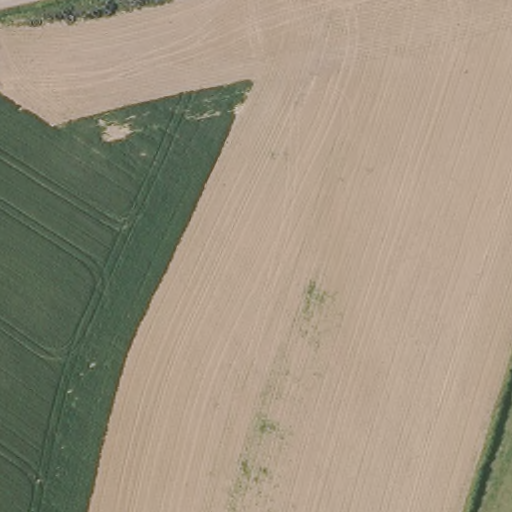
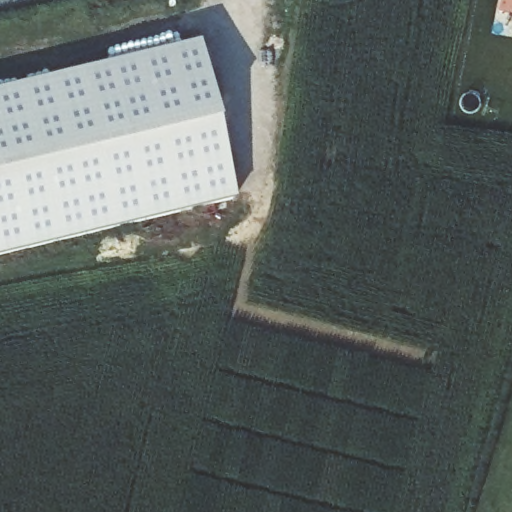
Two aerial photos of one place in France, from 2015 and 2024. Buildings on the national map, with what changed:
new [(495,14),(498,0),(512,0),(512,18),(495,14)]
new [(0,89),(193,42),(231,197),(0,254),(0,89)]

